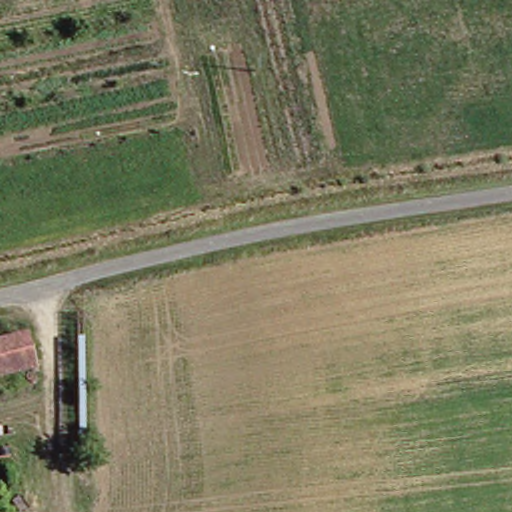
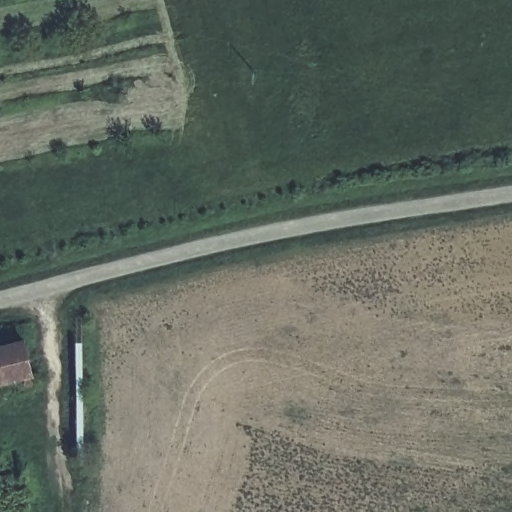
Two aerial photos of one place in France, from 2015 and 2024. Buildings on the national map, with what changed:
unchanged [(19,338),(27,371),(0,378),(0,343),(19,338)]

